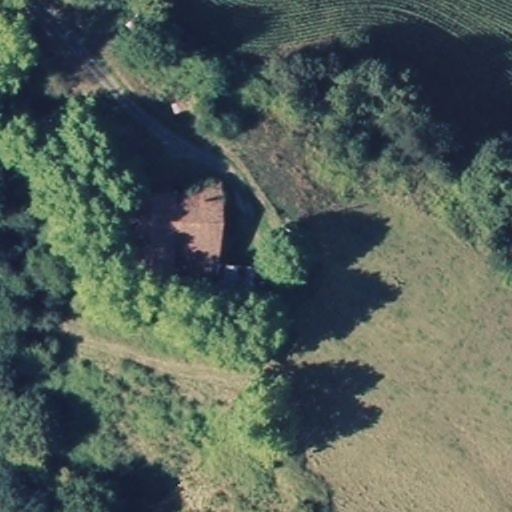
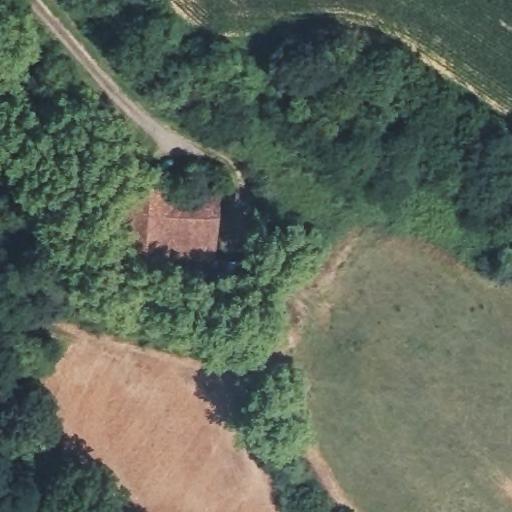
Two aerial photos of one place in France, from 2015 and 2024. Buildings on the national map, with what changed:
unchanged [(133,188),(191,190),(191,180),(211,180),(213,196),(207,195),(211,264),(208,264),(134,258),(132,206),(133,188)]
unchanged [(211,264),(251,265),(252,292),(209,289),(208,264),(211,264)]

